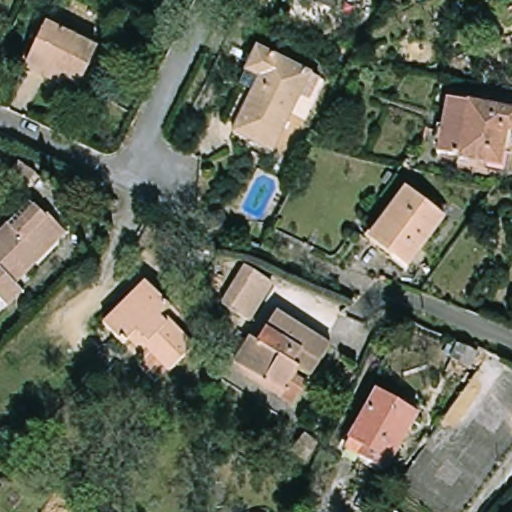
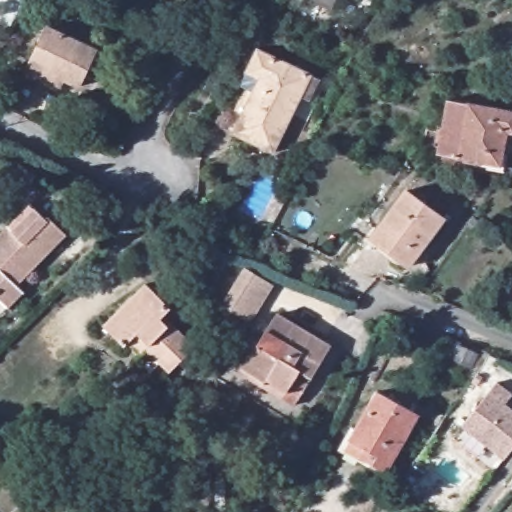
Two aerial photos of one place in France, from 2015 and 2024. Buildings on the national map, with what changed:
unchanged [(335,9),(315,0),(339,0),(335,9)]
unchanged [(26,69),(32,56),(46,25),(96,50),(79,86),(61,77),(58,84),(26,69)]
unchanged [(236,136),(261,82),(248,76),(259,52),(312,75),(276,154),(236,136)]
unchanged [(492,164),(444,154),(455,101),(512,112),(512,135),(507,155),(505,166),(492,164)]
unchanged [(26,192),(25,192),(9,181),(20,166),(21,165),(37,177),(26,192)]
unchanged [(375,230),(407,190),(444,221),(406,267),(390,254),(368,236),(375,230)]
unchanged [(12,305),(9,307),(0,298),(0,238),(29,207),(30,207),(32,204),(33,204),(36,207),(48,218),(50,216),(65,230),(69,234),(56,247),(28,276),(27,277),(18,286),(25,292),(12,305)]
unchanged [(275,283),(253,321),(228,306),(251,267),(275,283)]
unchanged [(197,348),(184,362),(181,365),(178,368),(177,370),(172,373),(148,348),(151,346),(140,333),(133,340),(132,342),(128,346),(127,347),(122,342),(107,326),(108,324),(149,283),(175,308),(166,317),(197,348)]
unchanged [(241,371),(243,367),(258,343),(266,348),(284,318),(337,352),(318,382),(317,383),(306,377),(293,397),(289,402),(241,371)]
unchanged [(440,358),(447,339),(475,350),(465,368),(440,358)]
new [(503,460),(460,426),(495,382),(512,395),(505,404),(512,410),(512,448),(503,460)]
unchanged [(393,470),(350,449),(379,391),(421,411),(419,416),(393,470)]

